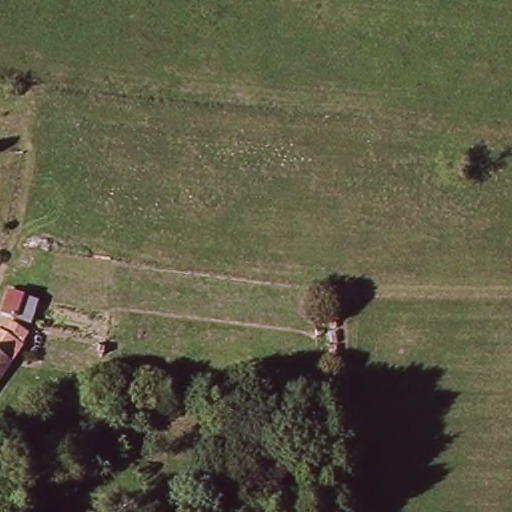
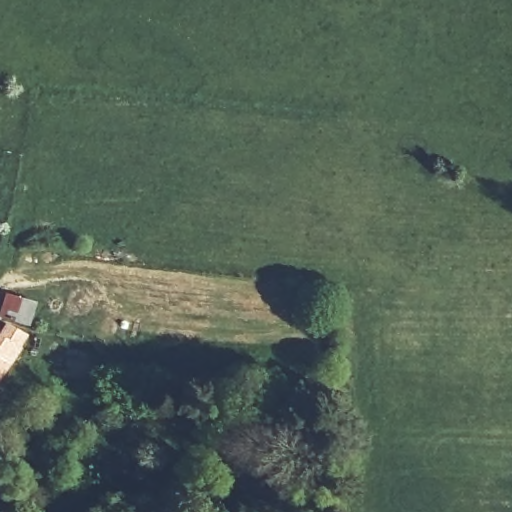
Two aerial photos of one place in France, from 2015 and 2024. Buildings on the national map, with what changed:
unchanged [(11,300),(48,309),(43,329),(7,320),(11,300)]
unchanged [(11,336),(18,328),(35,340),(20,364),(0,393),(0,336),(3,332),(11,336)]

